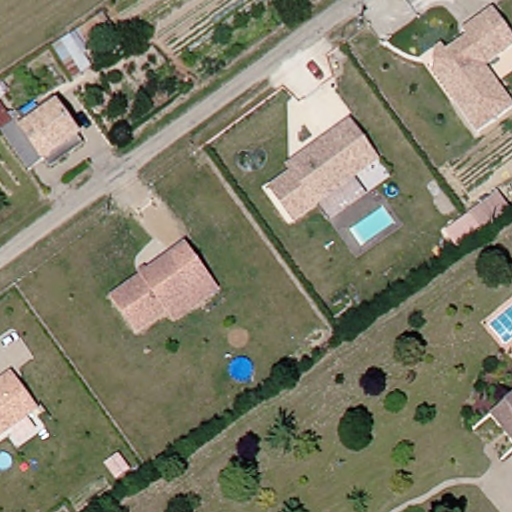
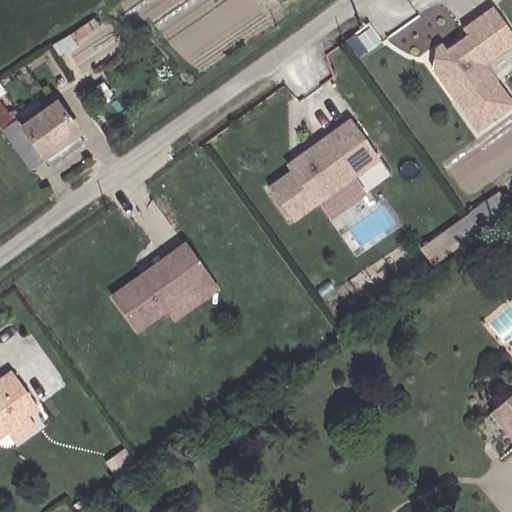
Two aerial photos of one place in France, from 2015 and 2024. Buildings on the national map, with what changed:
unchanged [(464,36),(458,29),(489,7),(512,39),(512,43),(482,64),(512,105),(476,131),(451,98),(426,64),(432,59),(464,36)]
unchanged [(115,23),(86,42),(86,50),(94,60),(75,72),(54,41),(105,8),(115,23)]
unchanged [(51,163),(45,155),(34,163),(5,123),(0,116),(0,93),(16,115),(22,122),(57,96),(81,127),(87,136),(51,163)]
unchanged [(377,158),(291,220),(267,187),(303,161),(300,155),(350,119),(377,158)]
unchanged [(498,192),(512,212),(457,249),(443,229),(498,192)]
unchanged [(165,309),(135,331),(110,298),(182,246),(214,289),(198,300),(172,319),(165,309)]
unchanged [(0,434),(0,385),(1,384),(0,382),(0,380),(14,370),(39,408),(0,434)]
unchanged [(512,395),(512,429),(495,409),(512,395)]

